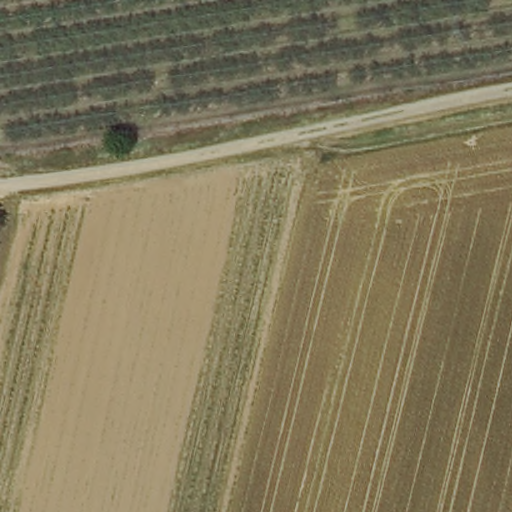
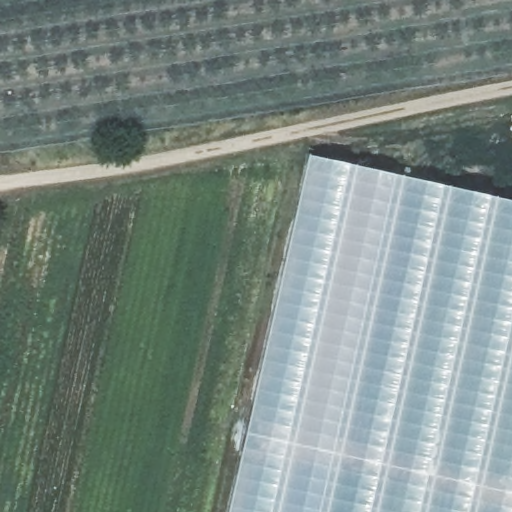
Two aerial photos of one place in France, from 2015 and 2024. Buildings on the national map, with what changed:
new [(512,202),(512,512),(233,512),(312,157),(512,202)]

